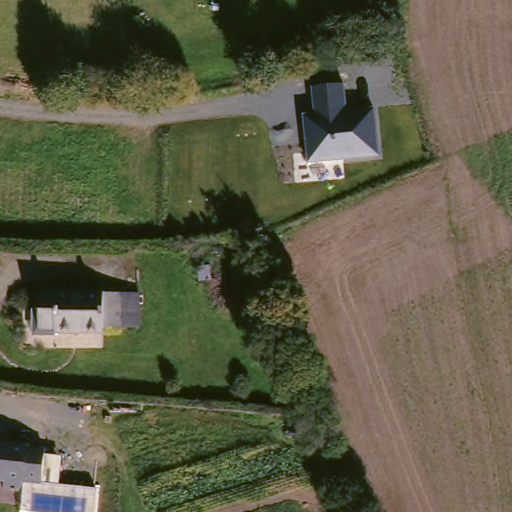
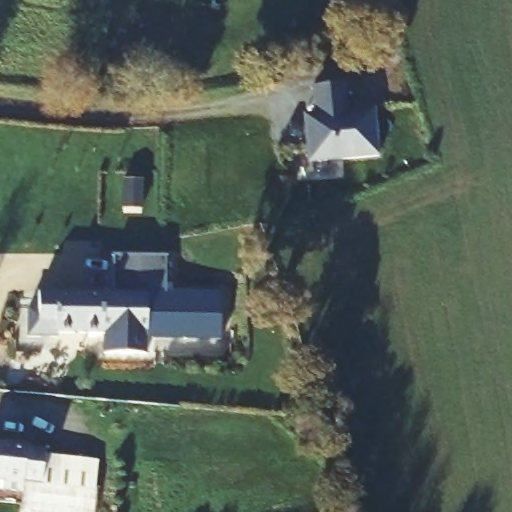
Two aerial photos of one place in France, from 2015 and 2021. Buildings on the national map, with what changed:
unchanged [(314,112),(311,87),(343,83),(346,110),(374,107),(379,155),(307,162),(302,113),(314,112)]
new [(114,255),(164,254),(165,290),(221,289),(221,337),(146,336),(146,356),(106,357),(106,333),(106,327),(123,326),(121,291),(113,291),(114,255)]
unchanged [(123,326),(106,327),(106,333),(39,333),(41,293),(121,291),(123,326)]
unchanged [(58,333),(58,340),(26,339),(26,306),(40,307),(39,333),(58,333)]
unchanged [(20,449),(41,450),(40,481),(23,480),(23,490),(3,489),(3,483),(0,483),(0,446),(20,447),(20,449)]

